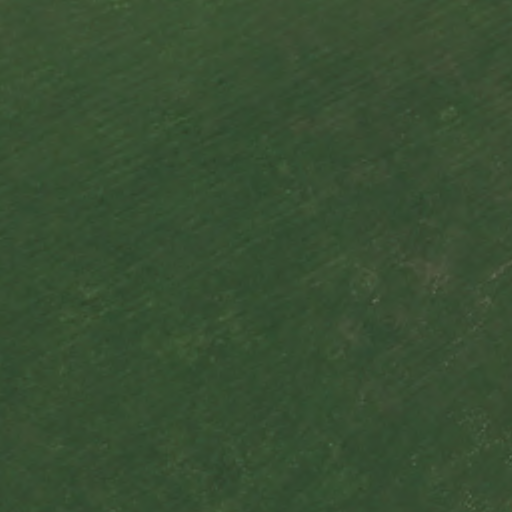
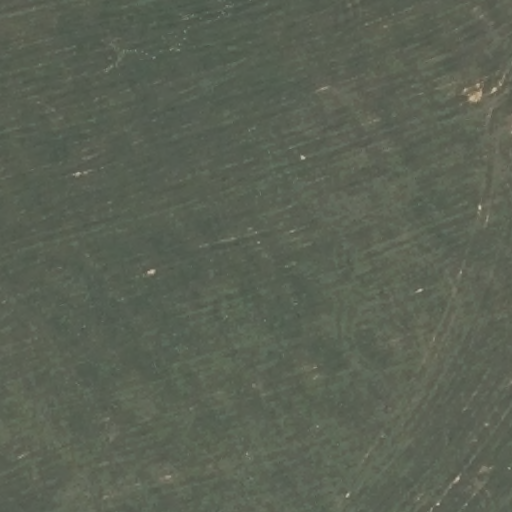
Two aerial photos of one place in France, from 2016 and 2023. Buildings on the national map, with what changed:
[]

